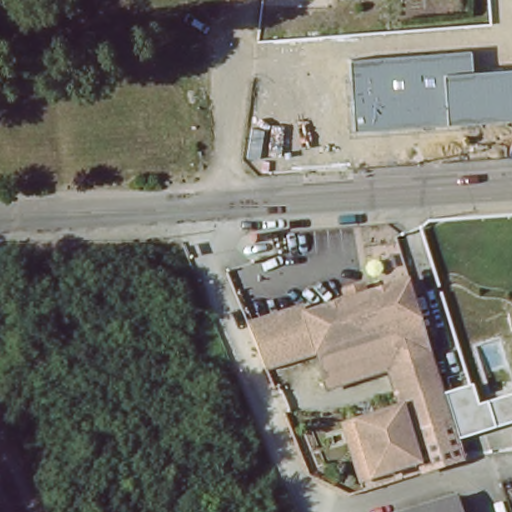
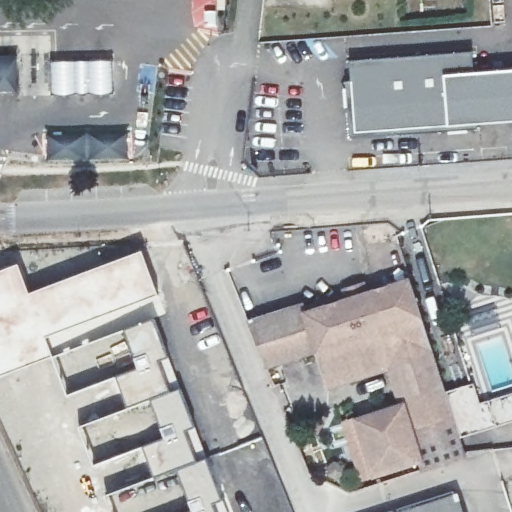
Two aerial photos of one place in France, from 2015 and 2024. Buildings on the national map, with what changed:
unchanged [(355,131),(350,61),(471,52),(473,72),(512,69),(512,123),(447,127),(355,131)]
new [(114,95),(51,96),(53,60),(113,61),(114,95)]
new [(19,261),(31,290),(142,247),(160,295),(141,304),(108,316),(53,346),(56,353),(0,375),(0,269),(19,261)]
unchanged [(405,408),(392,371),(338,390),(313,318),(416,282),(458,405),(462,418),(414,435),(424,464),(379,480),(366,443),(386,437),(379,417),(405,408)]
new [(246,320),(309,302),(313,318),(324,350),(266,370),(246,320)]
new [(154,315),(182,386),(125,405),(114,376),(88,387),(82,373),(62,380),(53,355),(154,315)]
unchanged [(479,402),(512,392),(512,421),(460,437),(467,460),(426,472),(424,464),(414,435),(462,418),(458,405),(452,389),(473,382),(479,402)]
new [(119,407),(125,405),(182,386),(208,456),(151,475),(140,449),(94,466),(79,423),(119,407)]
unchanged [(369,483),(350,427),(379,417),(386,437),(366,443),(379,480),(369,483)]
unchanged [(463,512),(394,512),(458,492),(463,512)]

